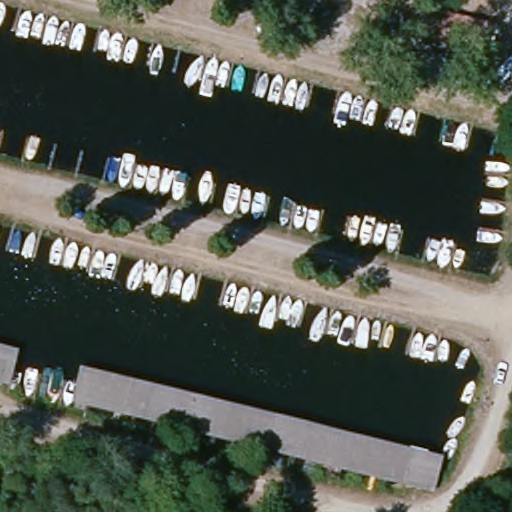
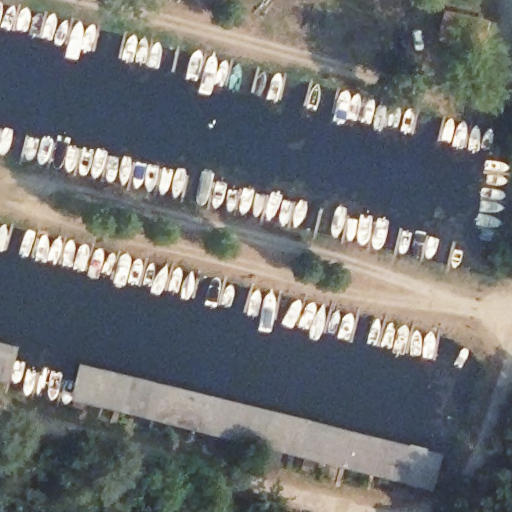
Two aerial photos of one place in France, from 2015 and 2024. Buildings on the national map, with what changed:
unchanged [(0,346),(17,350),(7,385),(0,384),(0,346)]
unchanged [(402,482),(74,403),(82,366),(415,448),(402,482)]

